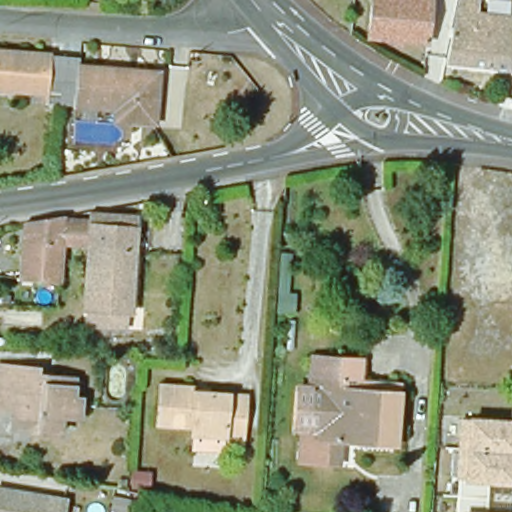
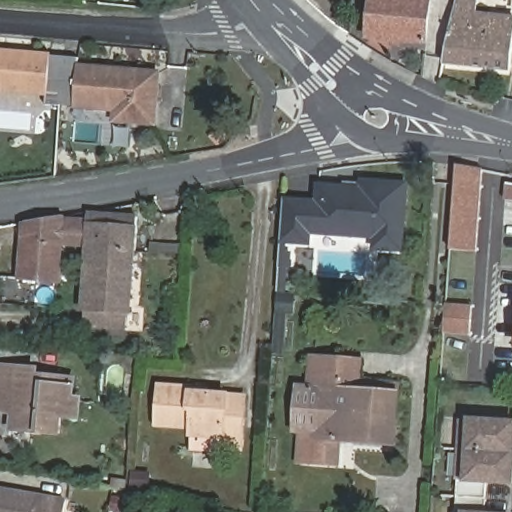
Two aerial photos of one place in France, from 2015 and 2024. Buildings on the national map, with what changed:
unchanged [(371,36),(375,0),(435,0),(430,43),(371,36)]
unchanged [(446,66),(459,0),(478,0),(474,18),(512,22),(512,42),(508,73),(446,66)]
unchanged [(64,59),(62,92),(61,106),(47,105),(47,94),(0,91),(0,54),(64,59)]
unchanged [(77,60),(76,69),(157,75),(154,123),(112,121),(112,110),(61,106),(62,92),(64,59),(77,60)]
new [(450,249),(457,164),(483,168),(478,251),(450,249)]
new [(373,250),(374,239),(313,236),(312,246),(283,244),(285,198),(316,200),(317,183),(361,186),(361,180),(410,184),(406,251),(373,250)]
new [(507,184),(512,185),(512,200),(505,200),(507,184)]
unchanged [(81,334),(82,314),(78,313),(84,252),(58,249),(57,259),(54,288),(38,287),(15,284),(20,230),(47,226),(62,223),(62,225),(85,227),(86,219),(133,223),(125,318),(122,318),(121,337),(81,334)]
new [(471,335),(443,333),(445,304),(472,306),(471,335)]
unchanged [(397,448),(343,443),(341,470),(306,467),(307,436),(322,437),(326,394),(314,393),(317,363),(346,365),(365,367),(362,396),(402,400),(397,448)]
unchanged [(7,439),(8,431),(10,419),(0,417),(0,371),(33,374),(32,382),(54,384),(69,386),(67,405),(76,406),(74,424),(56,423),(55,435),(55,443),(7,439)]
unchanged [(209,386),(208,390),(250,393),(245,446),(230,445),(228,444),(227,451),(199,449),(200,432),(198,432),(200,414),(170,411),(165,411),(167,382),(172,382),(192,384),(209,386)]
unchanged [(307,395),(319,396),(317,435),(297,435),(297,383),(307,385),(307,395)]
unchanged [(460,420),(469,420),(512,422),(512,487),(488,486),(487,512),(455,512),(460,420)]
unchanged [(66,502),(64,512),(0,512),(0,490),(66,502)]

